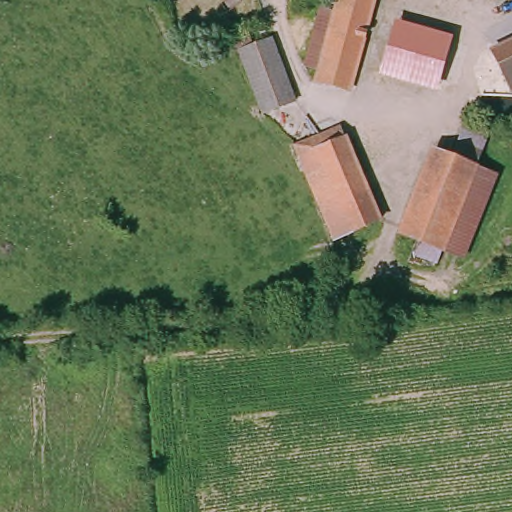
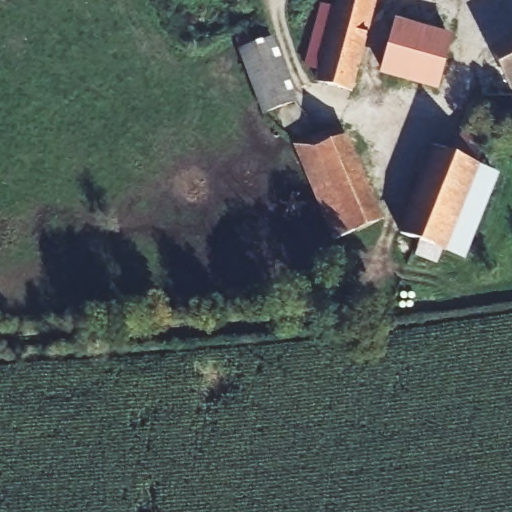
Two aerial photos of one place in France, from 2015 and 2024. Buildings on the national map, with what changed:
unchanged [(329,16),(334,0),(377,0),(347,92),(308,81),(312,68),(297,64),(313,12),(329,16)]
unchanged [(452,36),(437,91),(381,74),(395,20),(452,36)]
unchanged [(492,53),(512,42),(512,88),(509,89),(492,53)]
unchanged [(270,43),(297,100),(280,109),(252,51),(270,43)]
unchanged [(264,116),(237,60),(252,51),(280,109),(264,116)]
unchanged [(336,129),(377,219),(337,240),(295,149),(336,129)]
unchanged [(416,242),(402,235),(438,147),(450,152),(455,139),(483,152),(442,254),(416,242)]
unchanged [(507,164),(467,262),(442,254),(483,152),(507,164)]

